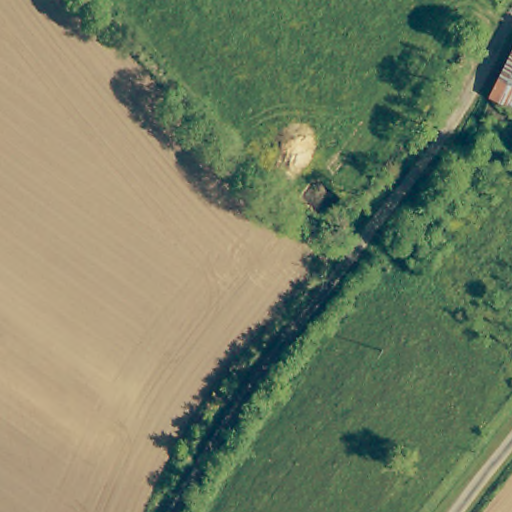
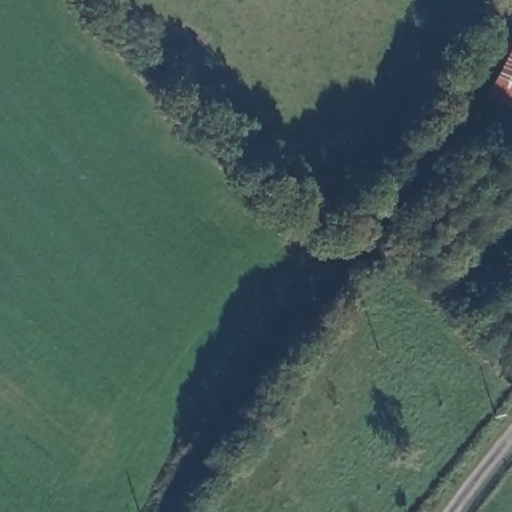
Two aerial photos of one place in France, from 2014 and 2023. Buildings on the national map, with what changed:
unchanged [(512,40),(512,105),(483,88),(512,40)]

